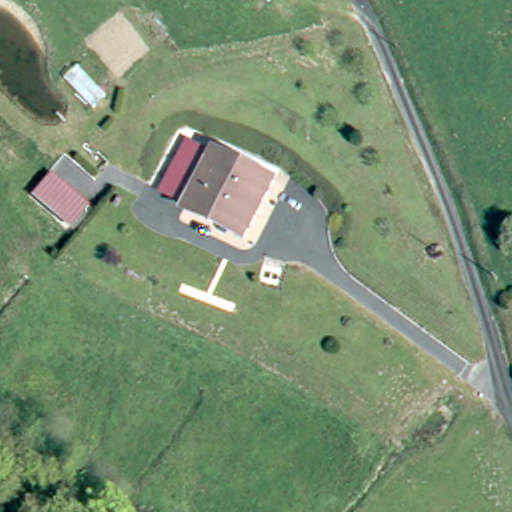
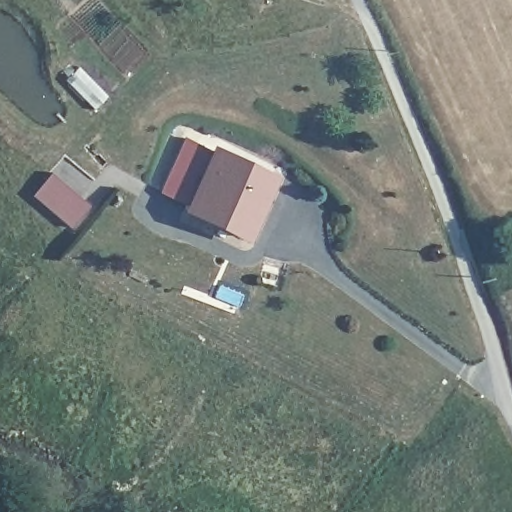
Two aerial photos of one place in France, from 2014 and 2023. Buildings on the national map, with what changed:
unchanged [(248,238),(190,210),(192,206),(163,193),(191,140),(276,182),(248,238)]
unchanged [(89,206),(70,229),(29,196),(50,174),(89,206)]

